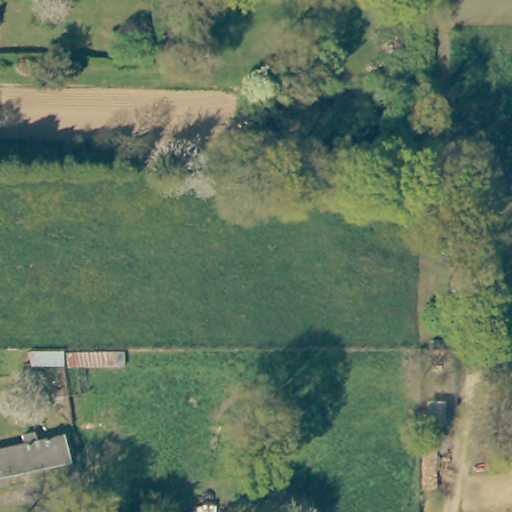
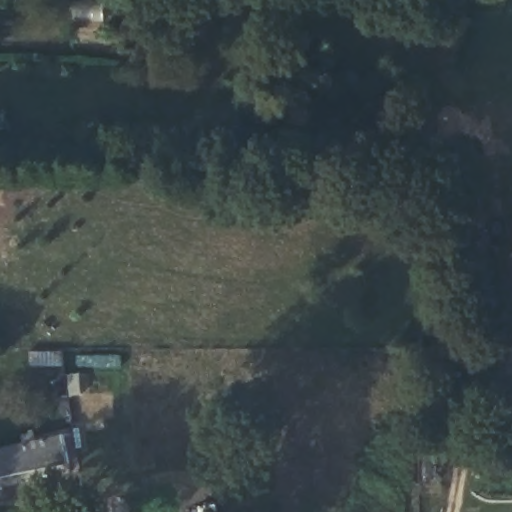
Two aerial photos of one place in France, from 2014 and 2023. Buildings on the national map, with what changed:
unchanged [(0,480),(0,451),(21,446),(20,438),(31,436),(33,444),(60,438),(66,466),(0,480)]

